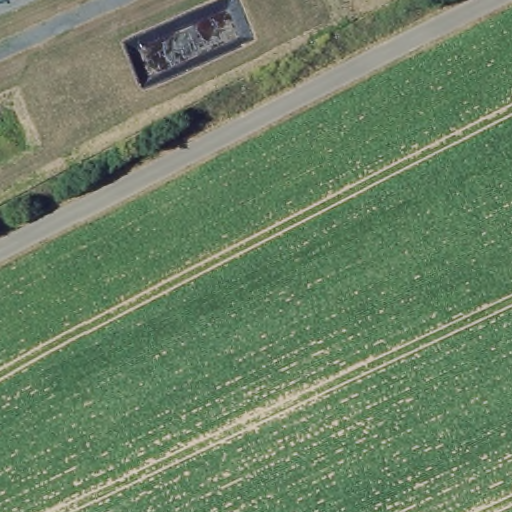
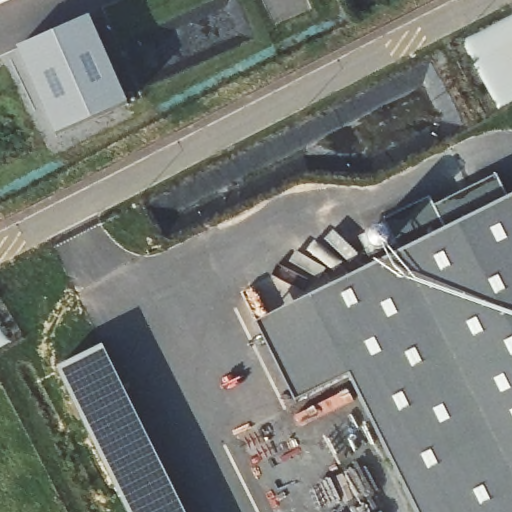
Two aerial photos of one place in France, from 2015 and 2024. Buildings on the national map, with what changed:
unchanged [(0,2),(0,0),(5,0),(0,2)]
new [(16,49),(89,16),(128,104),(54,137),(16,49)]
new [(297,402),(258,326),(381,267),(365,244),(388,235),(383,226),(428,202),(431,206),(501,176),(512,197),(512,512),(416,512),(347,375),(297,402)]
new [(127,512),(56,368),(104,345),(187,512),(127,512)]

